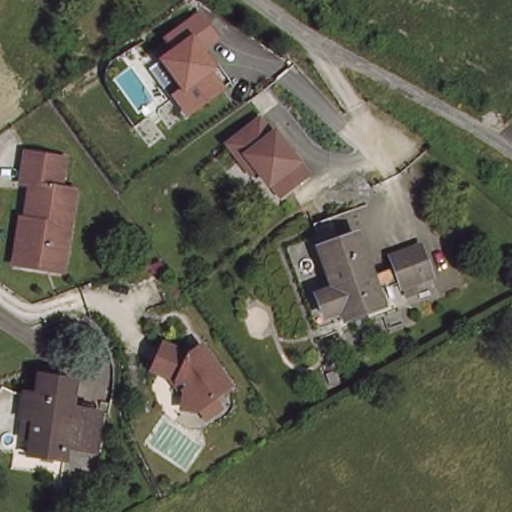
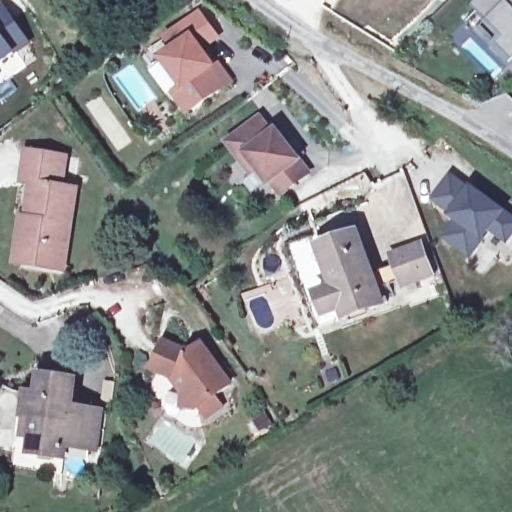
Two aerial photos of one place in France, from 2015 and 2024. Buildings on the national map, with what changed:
new [(479,0),(512,0),(512,75),(490,53),(491,51),(475,34),(485,24),(470,9),(479,0)]
new [(27,44),(14,52),(25,69),(0,83),(0,6),(2,5),(27,44)]
unchanged [(186,40),(191,46),(195,44),(200,51),(197,54),(199,58),(195,61),(208,79),(173,104),(160,86),(168,79),(147,50),(160,41),(152,29),(185,5),(202,29),(186,40)]
unchanged [(235,156),(223,139),(255,115),(267,130),(270,127),(303,170),(275,191),(265,178),(263,180),(252,165),(246,170),(235,156)]
unchanged [(18,214),(23,215),(30,181),(20,179),(25,148),(65,155),(59,185),(73,187),(60,268),(22,262),(10,260),(18,214)]
new [(450,217),(448,215),(430,201),(450,171),(470,184),(512,214),(512,234),(505,244),(488,233),(468,259),(441,239),(452,221),(450,218),(450,217)]
unchanged [(353,231),(377,292),(383,289),(387,300),(345,318),(340,304),(323,312),(315,292),(335,285),(319,243),(353,231)]
unchanged [(399,283),(388,253),(420,241),(431,272),(399,283)]
unchanged [(200,412),(192,402),(191,403),(177,400),(180,385),(172,374),(147,362),(158,337),(183,349),(196,340),(224,380),(208,391),(215,401),(200,412)]
unchanged [(103,415),(98,456),(70,451),(69,461),(35,457),(38,419),(27,417),(30,395),(43,396),(47,379),(80,384),(77,411),(103,415)]

